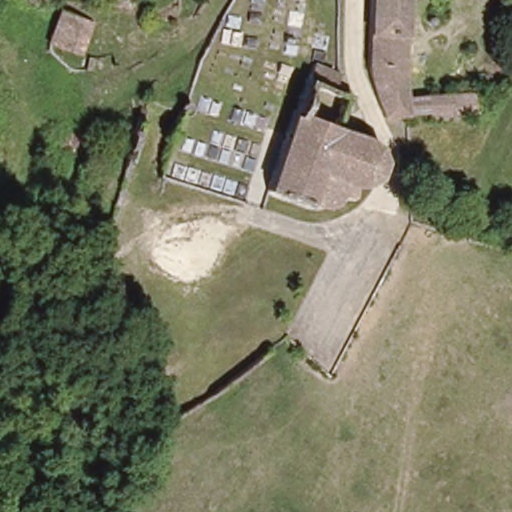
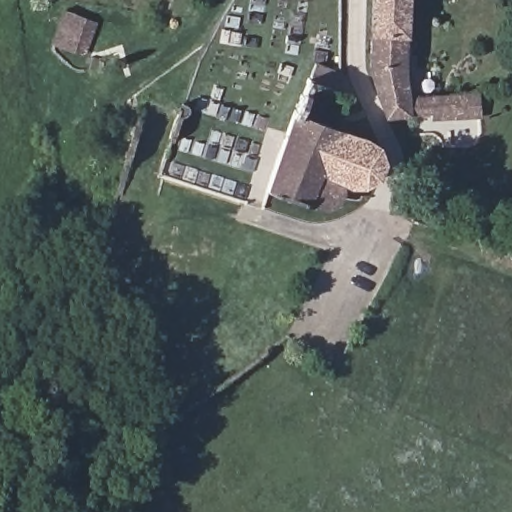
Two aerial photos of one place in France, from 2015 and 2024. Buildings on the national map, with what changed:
unchanged [(365,60),(368,0),(408,0),(410,95),(475,96),(476,121),(411,121),(382,121),(365,60)]
unchanged [(94,20),(85,54),(52,45),(61,11),(94,20)]
unchanged [(312,64),(340,75),(336,87),(352,99),(342,135),(360,132),(368,134),(373,140),(380,149),(380,162),(380,163),(376,174),(369,182),(362,185),(353,189),(356,198),(338,198),(336,202),(323,206),(315,209),(271,192),(266,190),(312,64)]

